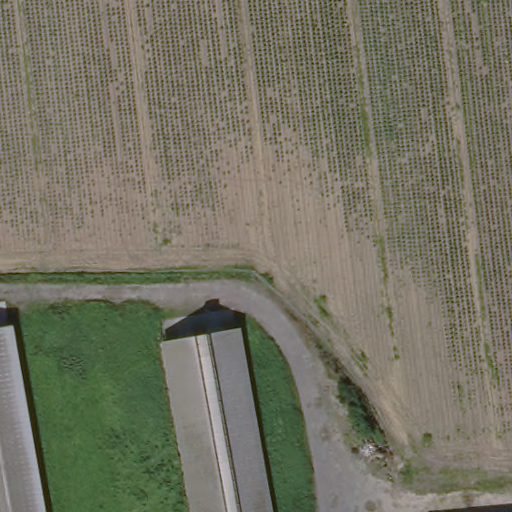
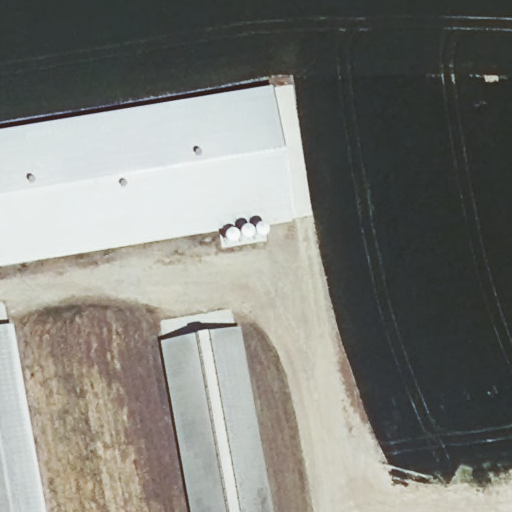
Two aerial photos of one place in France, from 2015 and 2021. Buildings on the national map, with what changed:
new [(292,219),(0,267),(0,132),(271,88),(292,219)]
unchanged [(35,512),(0,512),(0,324),(4,323),(35,512)]
unchanged [(269,512),(198,512),(171,336),(239,328),(269,512)]

